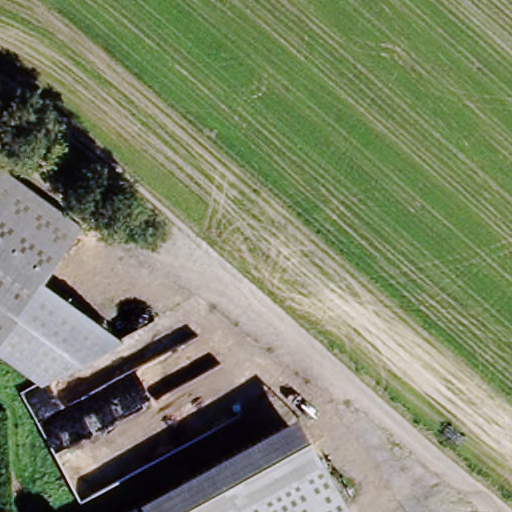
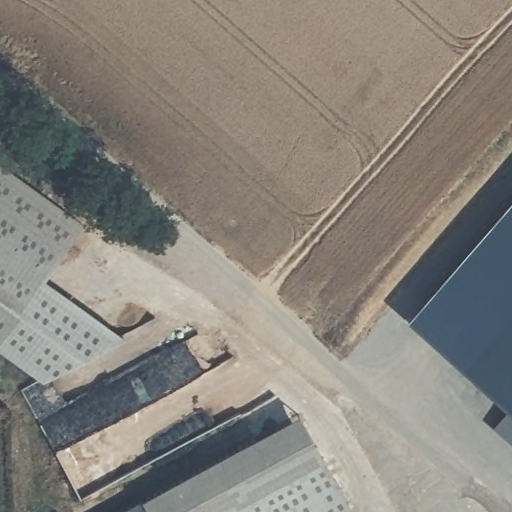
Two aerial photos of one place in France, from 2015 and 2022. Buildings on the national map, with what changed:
unchanged [(44,279),(124,337),(41,380),(0,351),(0,165),(83,226),(44,279)]
new [(411,326),(512,211),(512,414),(411,326)]
new [(512,415),(512,441),(496,427),(511,414),(512,415)]
unchanged [(346,512),(143,512),(164,500),(299,423),(349,511),(346,512)]

